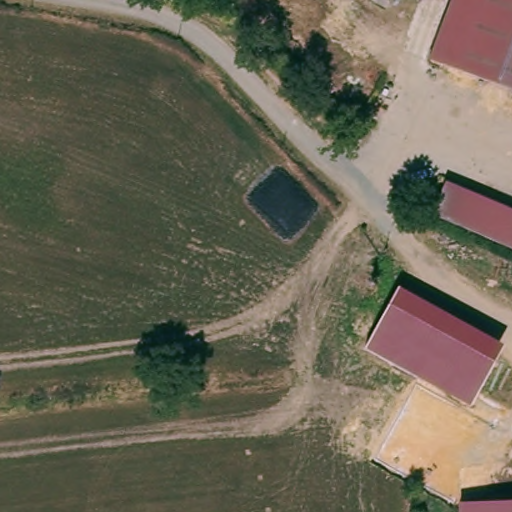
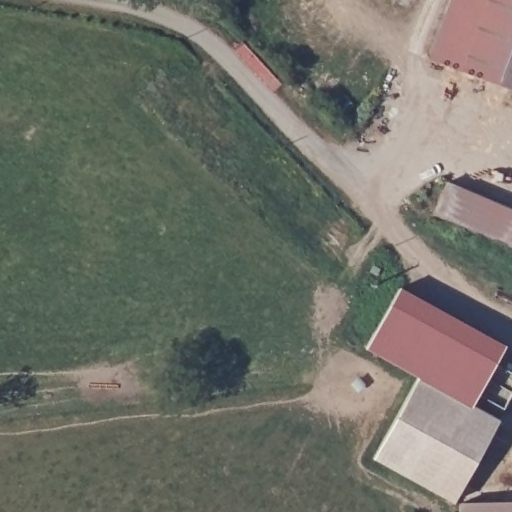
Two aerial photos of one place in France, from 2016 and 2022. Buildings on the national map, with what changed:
unchanged [(457,0),(512,0),(512,91),(431,50),(457,0)]
unchanged [(512,238),(509,245),(436,217),(450,187),(512,212),(512,238)]
unchanged [(512,238),(512,247),(509,245),(512,238)]
unchanged [(365,349),(399,289),(504,347),(470,407),(365,349)]
new [(470,407),(497,421),(455,504),(371,459),(416,378),(470,407)]
unchanged [(512,503),(512,512),(471,512),(472,499),(512,503)]

